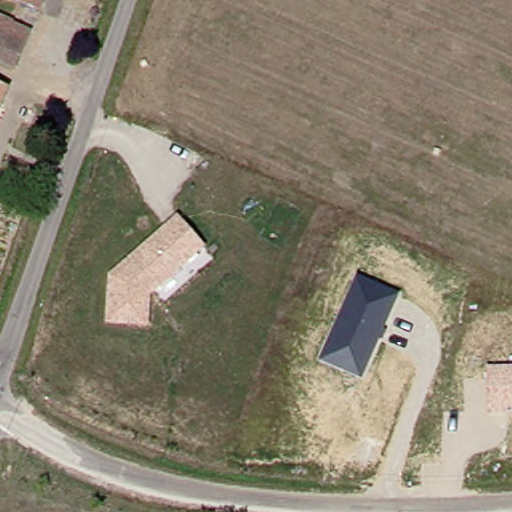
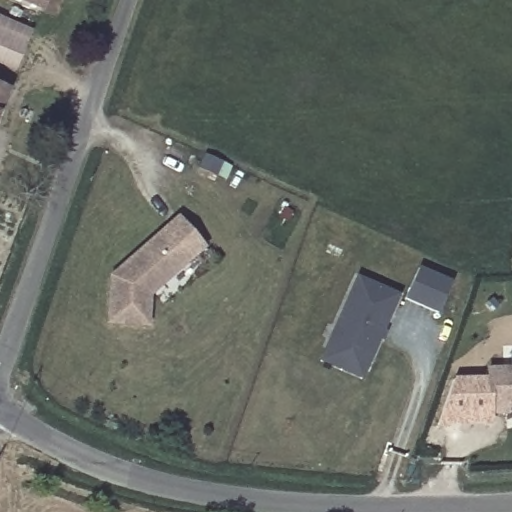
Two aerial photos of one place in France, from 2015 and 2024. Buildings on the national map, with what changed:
unchanged [(6,0),(36,0),(31,11),(6,0)]
unchanged [(10,70),(0,66),(0,23),(26,35),(10,70)]
unchanged [(0,98),(0,89),(4,90),(0,98)]
unchanged [(151,293),(149,328),(106,325),(109,277),(178,215),(206,248),(151,293)]
new [(451,282),(437,313),(406,298),(419,267),(451,282)]
unchanged [(363,378),(320,360),(359,275),(401,293),(363,378)]
unchanged [(489,411),(488,367),(512,366),(512,410),(489,411)]
new [(489,403),(489,411),(493,411),(492,425),(436,427),(454,377),(488,378),(489,403)]

